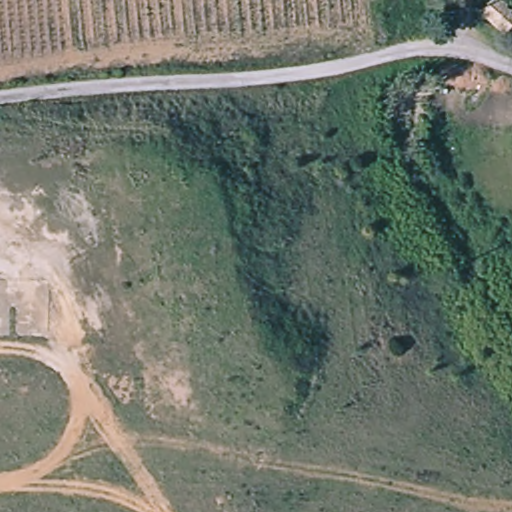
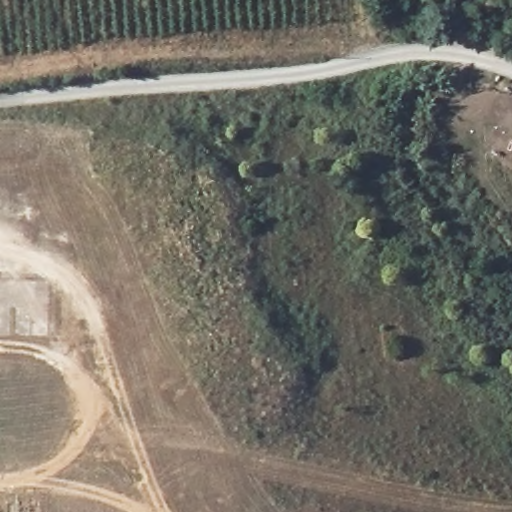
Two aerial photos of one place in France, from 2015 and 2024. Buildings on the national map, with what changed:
unchanged [(488,12),(499,0),(505,0),(512,6),(512,34),(488,12)]

